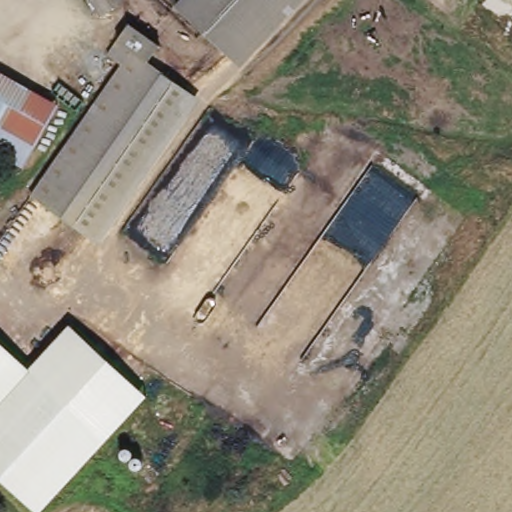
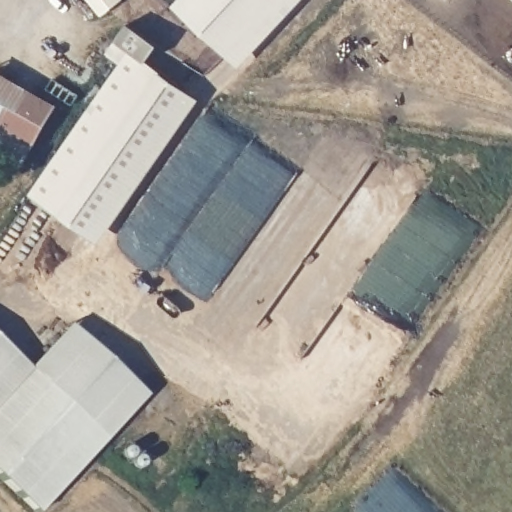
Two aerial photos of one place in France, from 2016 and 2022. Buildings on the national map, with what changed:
unchanged [(91,0),(122,0),(104,16),(91,0)]
unchanged [(182,0),(299,0),(241,55),(182,0)]
unchanged [(158,42),(146,62),(126,52),(119,65),(104,57),(118,33),(124,24),(135,30),(158,42)]
unchanged [(126,52),(146,62),(199,92),(113,246),(40,206),(119,65),(126,52)]
unchanged [(0,150),(0,75),(4,70),(53,106),(62,112),(39,145),(23,166),(14,160),(0,150)]
unchanged [(149,395),(41,512),(38,512),(0,477),(0,341),(30,369),(71,325),(149,395)]

